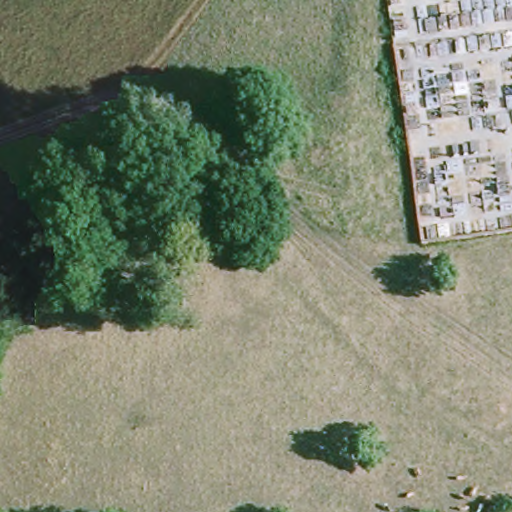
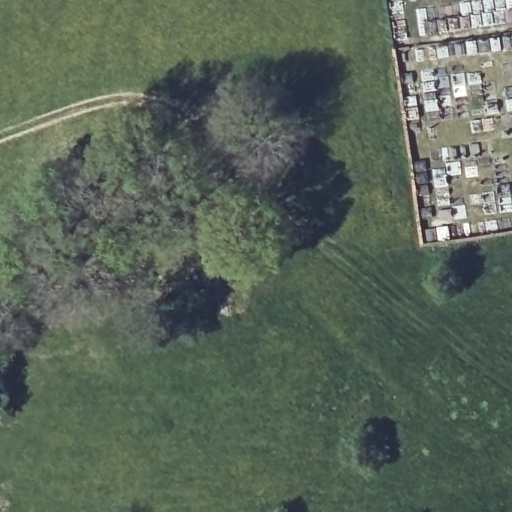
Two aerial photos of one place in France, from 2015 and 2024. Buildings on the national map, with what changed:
unchanged [(422,134),(424,156),(406,159),(403,136),(422,134)]

